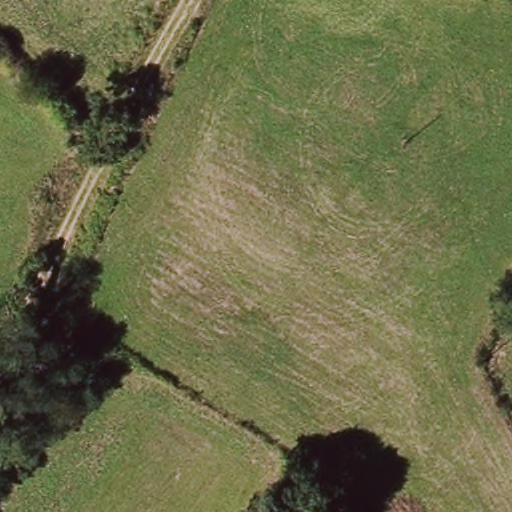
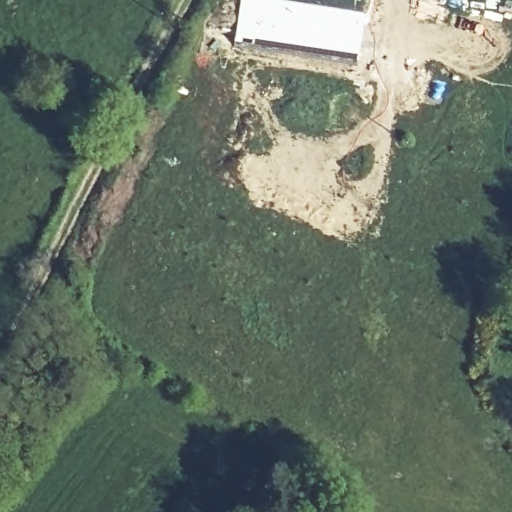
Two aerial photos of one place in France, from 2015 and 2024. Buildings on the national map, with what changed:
new [(282,0),(339,9),(366,15),(358,57),(233,39),(239,0),(282,0)]

